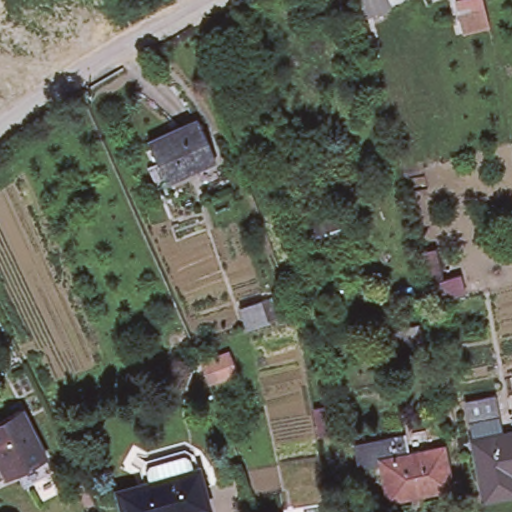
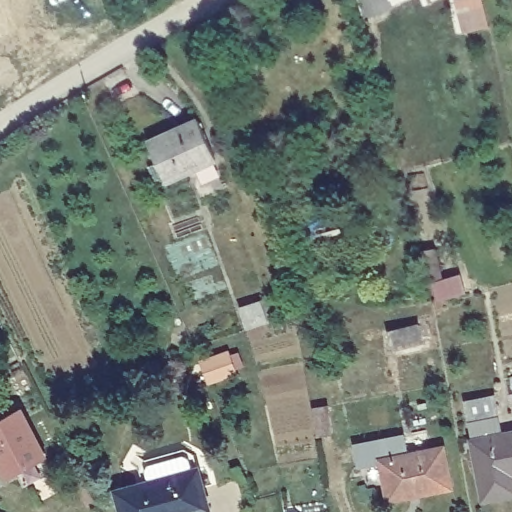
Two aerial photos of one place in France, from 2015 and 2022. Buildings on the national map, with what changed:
unchanged [(489,28),(461,36),(454,1),(455,0),(481,0),(489,28)]
unchanged [(149,145),(167,137),(199,122),(217,161),(183,177),(167,185),(149,145)]
unchanged [(309,224),(338,214),(344,231),(314,241),(309,224)]
unchanged [(435,249),(444,280),(459,275),(465,294),(432,303),(419,254),(435,249)]
unchanged [(269,326),(246,334),(239,317),(264,309),(269,326)]
unchanged [(426,349),(394,354),(391,333),(422,327),(426,349)]
unchanged [(237,376),(211,386),(203,366),(229,355),(237,376)]
unchanged [(512,472),(500,475),(504,493),(479,497),(468,436),(469,435),(466,417),(463,400),(492,394),(496,412),(499,429),(512,426),(512,472)]
unchanged [(47,459),(9,478),(0,460),(0,421),(21,410),(47,459)]
unchanged [(331,437),(317,439),(313,412),(326,410),(331,437)]
unchanged [(404,454),(439,449),(446,490),(383,501),(376,462),(355,465),(351,443),(401,435),(404,454)]
unchanged [(207,512),(125,512),(120,493),(144,487),(153,485),(149,472),(152,467),(184,458),(189,461),(193,473),(198,472),(209,512),(207,512)]

